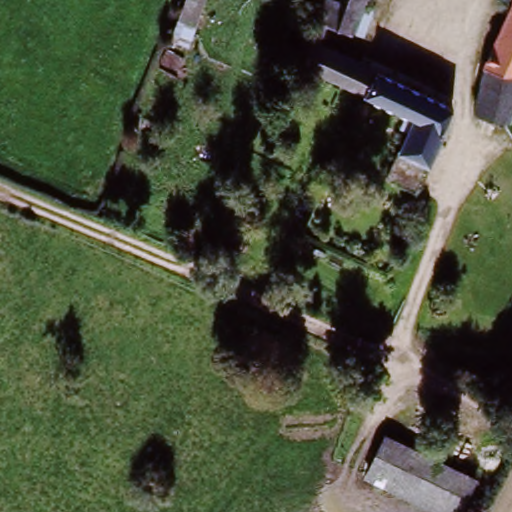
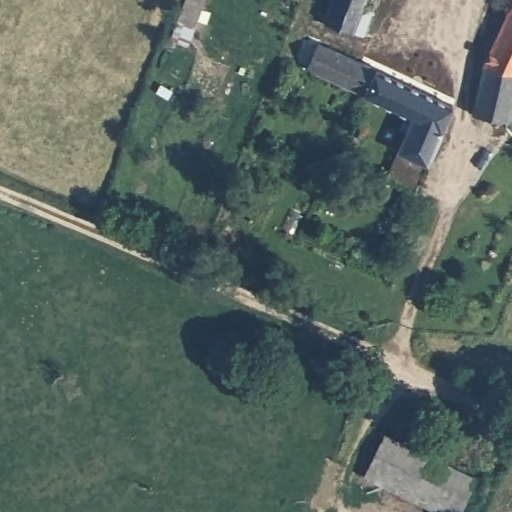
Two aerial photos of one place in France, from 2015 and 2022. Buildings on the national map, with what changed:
unchanged [(167,42),(179,0),(201,0),(189,45),(167,42)]
unchanged [(327,20),(311,13),(316,0),(365,0),(352,30),(327,20)]
unchanged [(509,0),(512,0),(512,67),(483,57),(509,0)]
unchanged [(318,42),(344,53),(372,66),(362,90),(292,60),(311,13),(327,20),(318,42)]
unchanged [(467,102),(483,57),(512,67),(512,75),(500,113),(467,102)]
unchanged [(406,124),(400,121),(405,109),(362,90),(372,66),(454,100),(428,159),(397,145),(406,124)]
unchanged [(385,174),(397,145),(428,159),(415,187),(385,174)]
unchanged [(385,431),(479,474),(463,512),(441,512),(365,476),(385,431)]

